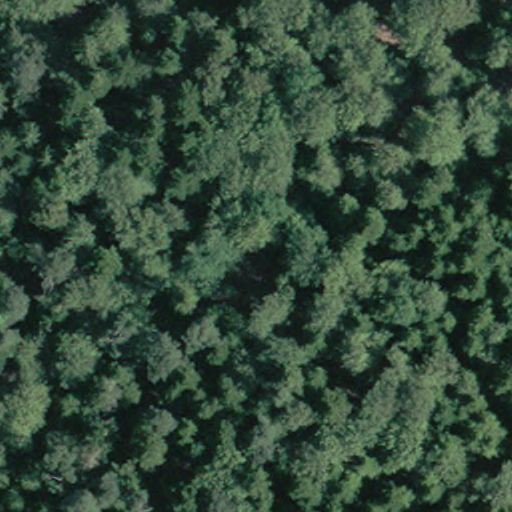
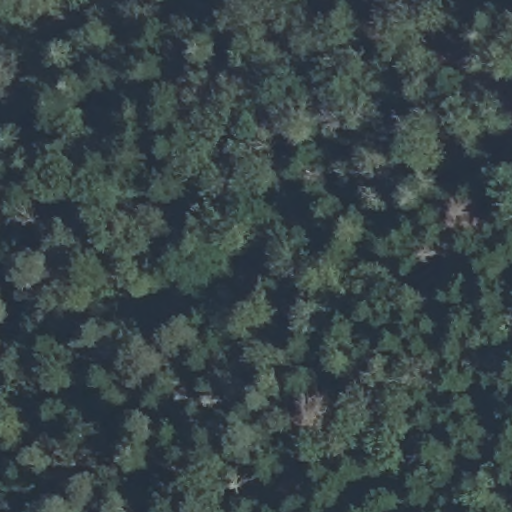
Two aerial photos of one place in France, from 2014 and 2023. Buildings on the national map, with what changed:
[]

